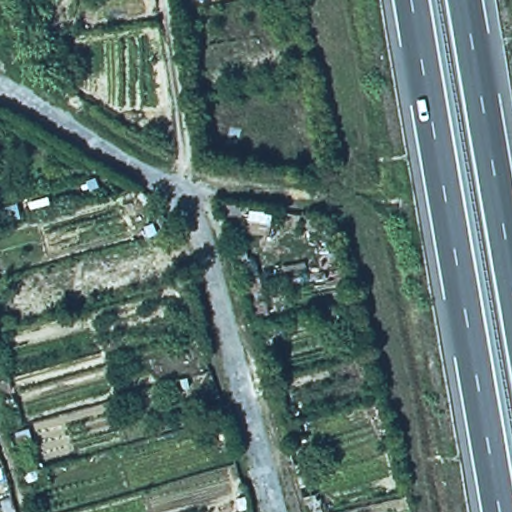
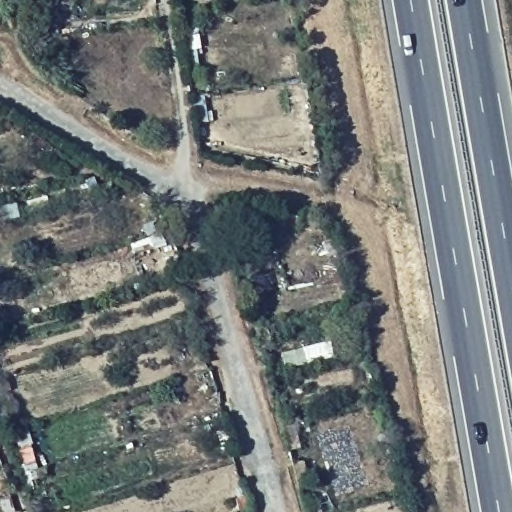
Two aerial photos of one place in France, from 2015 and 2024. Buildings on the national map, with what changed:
unchanged [(249,210),(270,216),(266,238),(242,232),(249,210)]
unchanged [(250,317),(236,265),(252,260),(266,317),(250,317)]
unchanged [(2,327),(0,328),(0,322),(2,327)]

